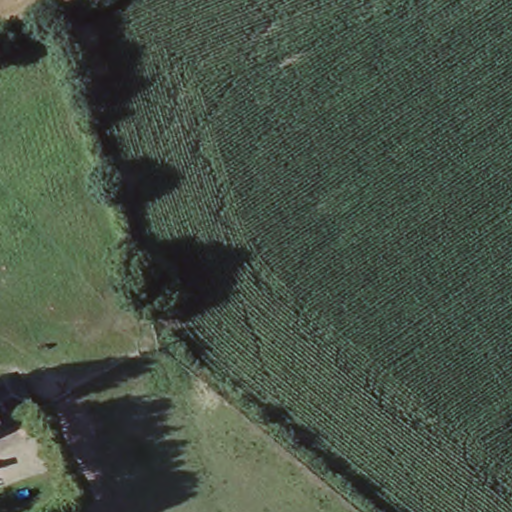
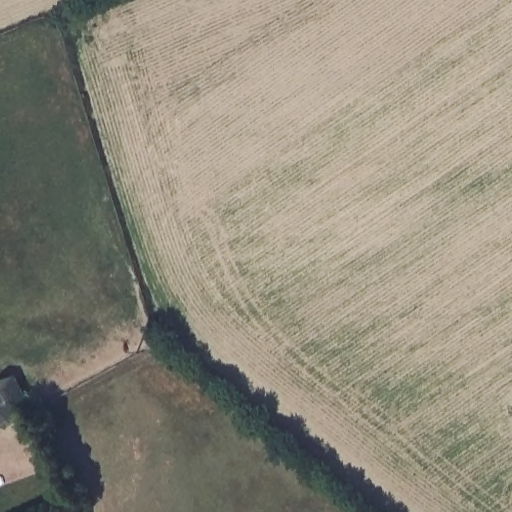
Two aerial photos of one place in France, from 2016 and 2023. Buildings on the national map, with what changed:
unchanged [(0,428),(0,385),(16,377),(32,411),(0,428)]

